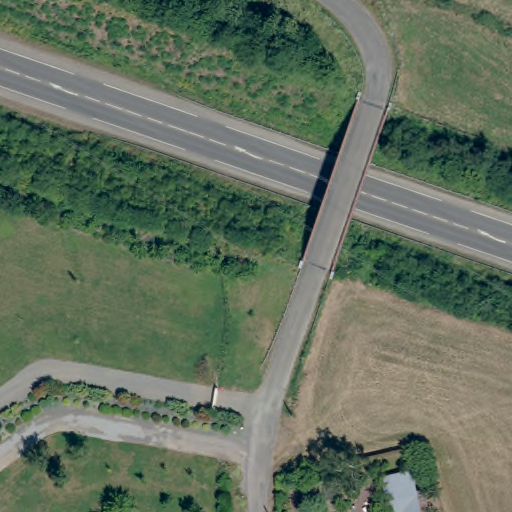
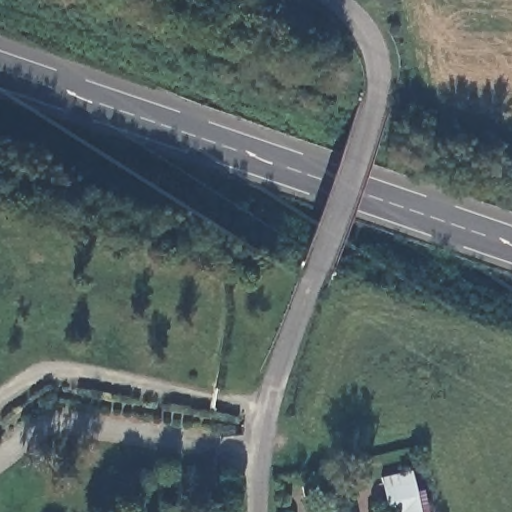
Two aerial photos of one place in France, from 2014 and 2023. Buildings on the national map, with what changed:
unchanged [(418,512),(396,512),(391,512),(386,512),(378,474),(407,467),(418,512)]
unchanged [(326,497),(305,501),(304,482),(322,477),(326,497)]

